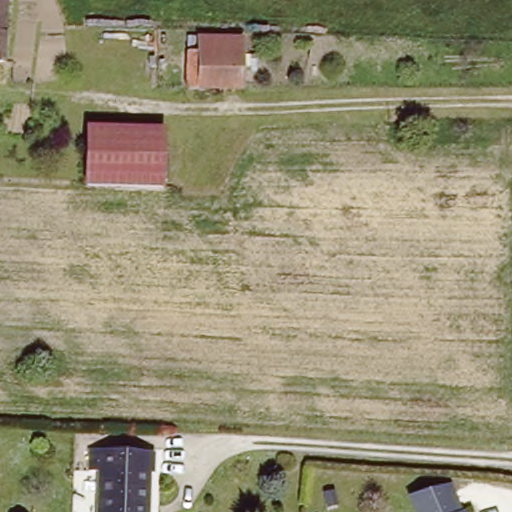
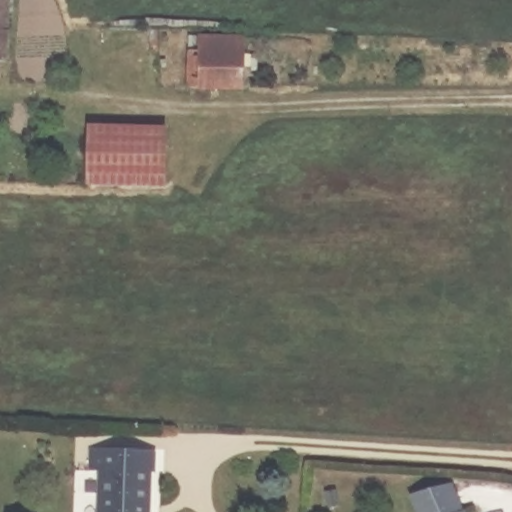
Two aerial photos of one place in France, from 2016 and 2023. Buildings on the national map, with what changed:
unchanged [(0,67),(0,5),(8,5),(8,11),(7,59),(7,67),(0,67)]
unchanged [(187,89),(190,37),(245,39),(243,55),(242,91),(187,89)]
unchanged [(169,128),(165,185),(91,182),(93,125),(169,128)]
unchanged [(144,512),(98,512),(103,467),(90,466),(93,443),(157,449),(153,485),(147,485),(144,512)]
unchanged [(410,497),(452,486),(462,512),(417,512),(410,498),(410,497)]

